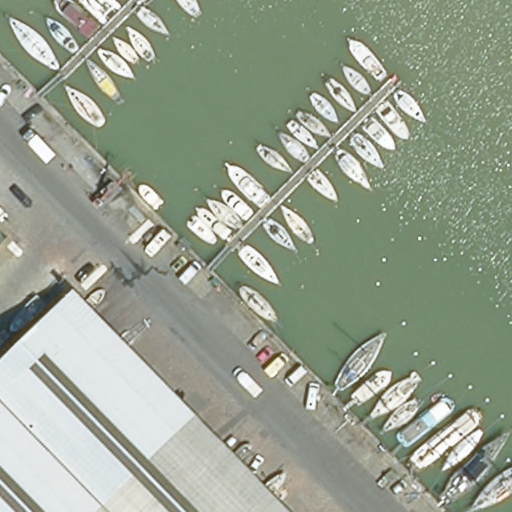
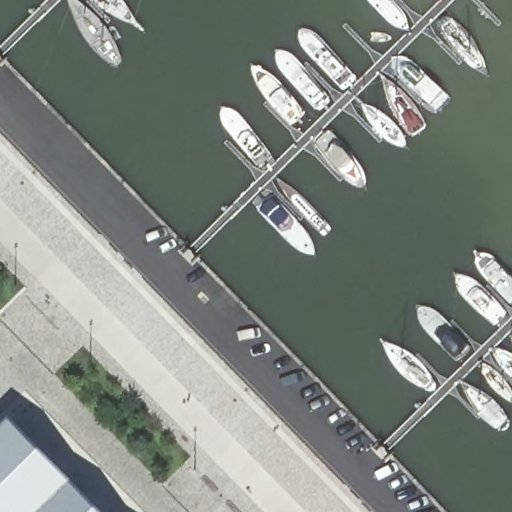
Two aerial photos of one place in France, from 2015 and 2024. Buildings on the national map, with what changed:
demolished [(61,302),(266,512),(0,512),(0,363),(61,302)]
new [(11,417),(104,512),(0,512),(0,429),(11,417)]

